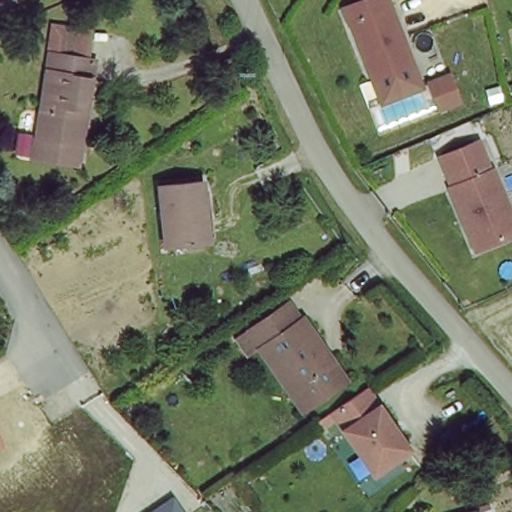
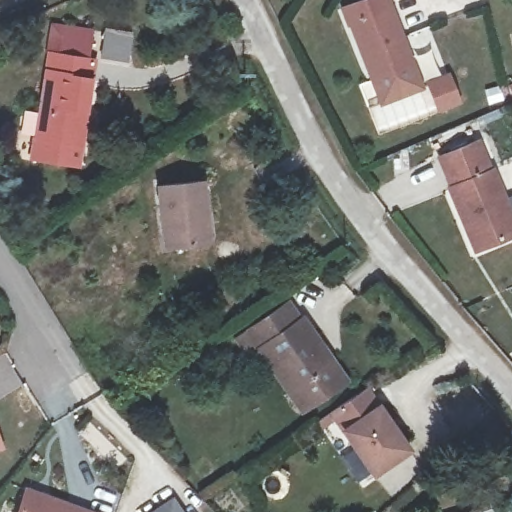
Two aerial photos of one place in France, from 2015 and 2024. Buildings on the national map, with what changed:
unchanged [(343,4),(353,0),(388,0),(413,61),(373,76),(351,19),(349,19),(343,4)]
unchanged [(63,160),(29,155),(33,131),(39,132),(55,52),(39,50),(44,21),(60,23),(89,27),(85,56),(96,58),(82,139),(78,163),(63,160)]
unchanged [(424,82),(450,72),(463,107),(435,116),(426,92),(383,109),(373,76),(413,61),(424,82)]
unchanged [(461,221),(444,183),(447,182),(433,152),(472,135),(485,165),(487,164),(512,219),(512,228),(479,242),(472,245),(461,221)]
unchanged [(213,237),(199,237),(199,246),(164,248),(160,185),(203,182),(205,196),(210,196),(213,237)]
unchanged [(250,360),(236,337),(249,330),(292,306),(305,327),(312,323),(346,385),(296,413),(286,395),(262,353),(250,360)]
unchanged [(408,450),(373,474),(331,411),(367,387),(408,450)]
unchanged [(0,439),(4,448),(0,450),(0,439)]
new [(100,512),(17,512),(26,486),(100,512)]
unchanged [(183,512),(149,512),(171,495),(183,512)]
unchanged [(480,512),(465,512),(479,508),(480,512)]

